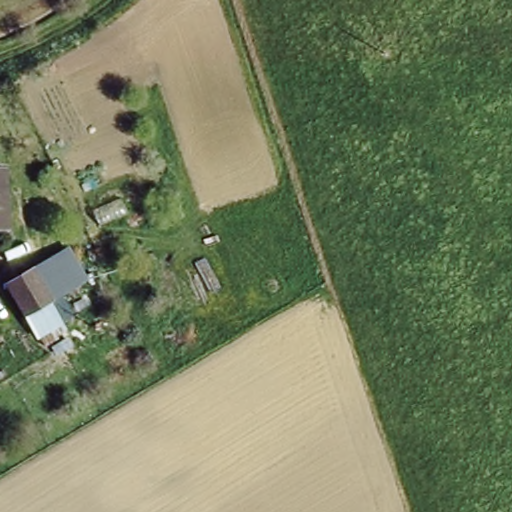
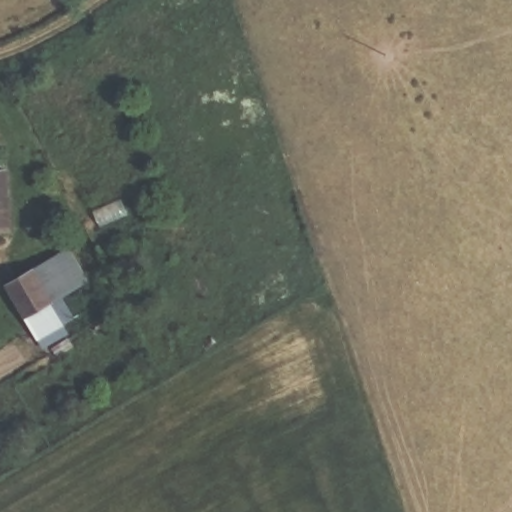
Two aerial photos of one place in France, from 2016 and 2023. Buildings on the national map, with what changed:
unchanged [(5,166),(7,226),(0,227),(0,166),(5,166)]
unchanged [(4,285),(36,265),(69,327),(45,345),(4,285)]

